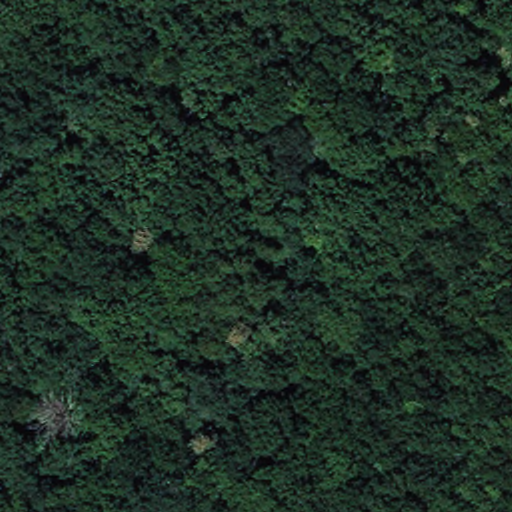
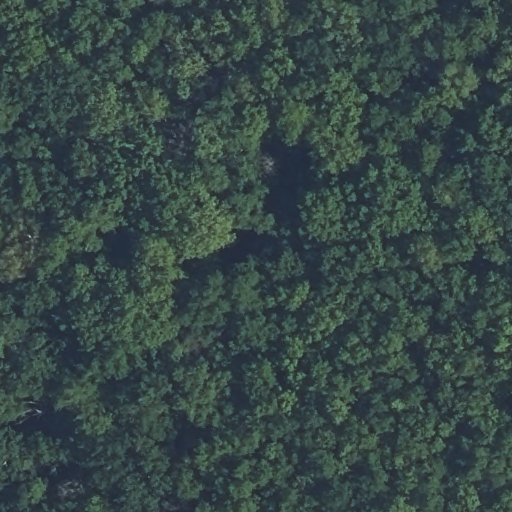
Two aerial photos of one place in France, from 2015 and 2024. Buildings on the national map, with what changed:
[]

